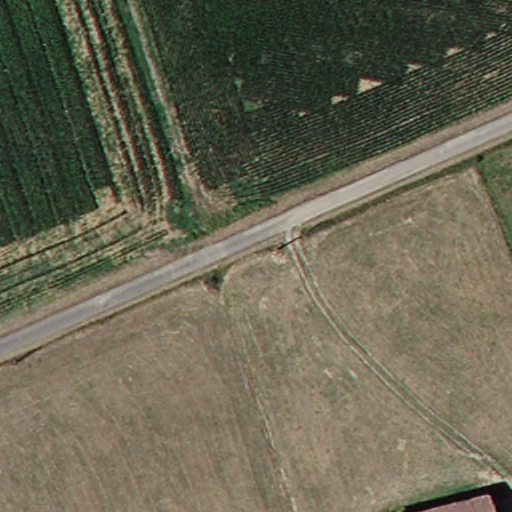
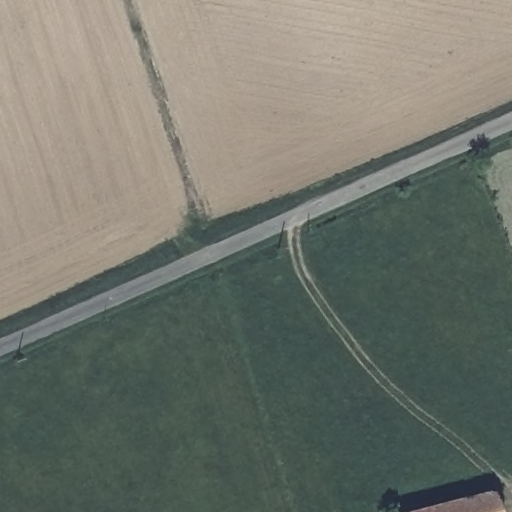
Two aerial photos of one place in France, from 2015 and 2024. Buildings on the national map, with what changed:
unchanged [(492,494),(498,512),(436,512),(492,494)]

